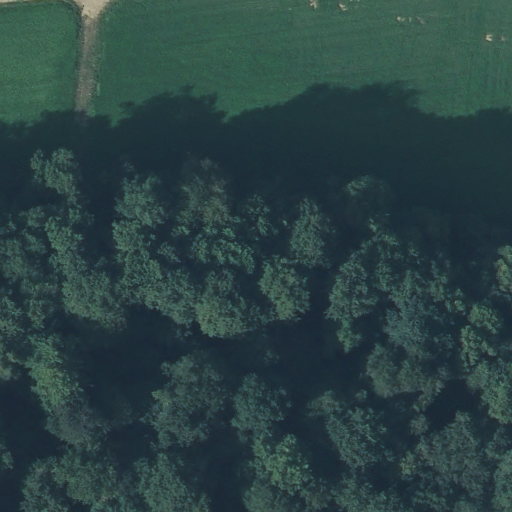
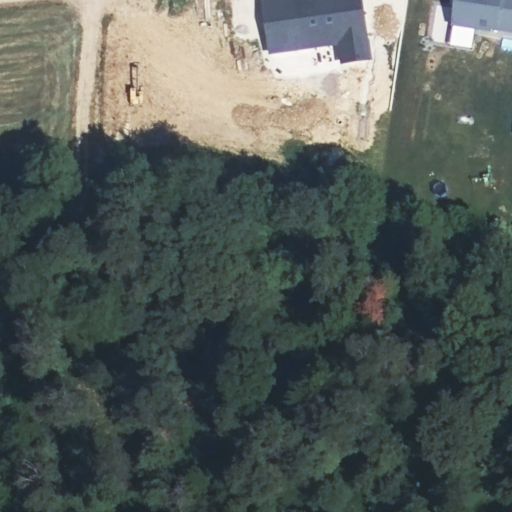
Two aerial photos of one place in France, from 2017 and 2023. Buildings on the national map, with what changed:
new [(268,52),(261,0),(357,0),(365,59),(341,63),(338,42),(309,46),(268,52)]
new [(453,24),(457,0),(505,0),(512,1),(512,28),(498,26),(498,30),(453,24)]

